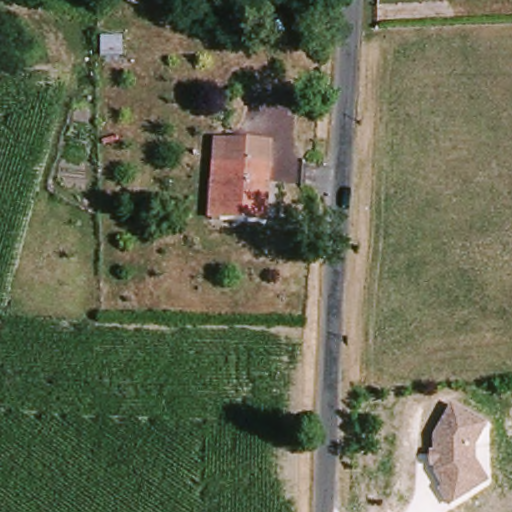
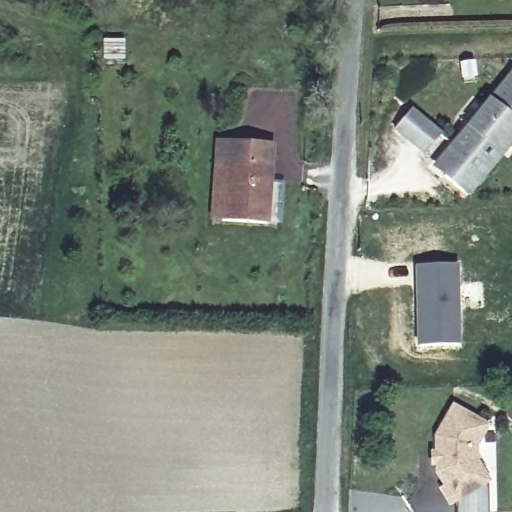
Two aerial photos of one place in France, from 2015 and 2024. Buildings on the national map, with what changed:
new [(512,74),(512,146),(469,197),(433,166),(512,74)]
unchanged [(267,239),(222,237),(212,237),(214,160),(224,160),(269,162),(267,239)]
new [(417,346),(415,267),(458,266),(460,343),(417,346)]
unchanged [(430,451),(435,451),(435,435),(452,406),(486,426),(474,446),(474,461),(485,482),(447,502),(438,487),(443,485),(435,470),(435,462),(430,462),(430,451)]
new [(487,486),(489,512),(456,512),(455,503),(481,488),(487,486)]

